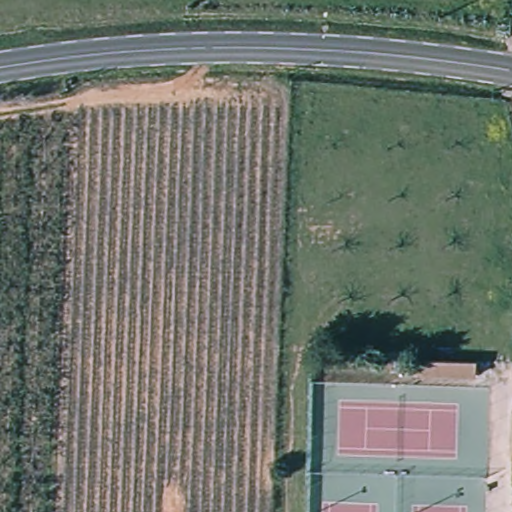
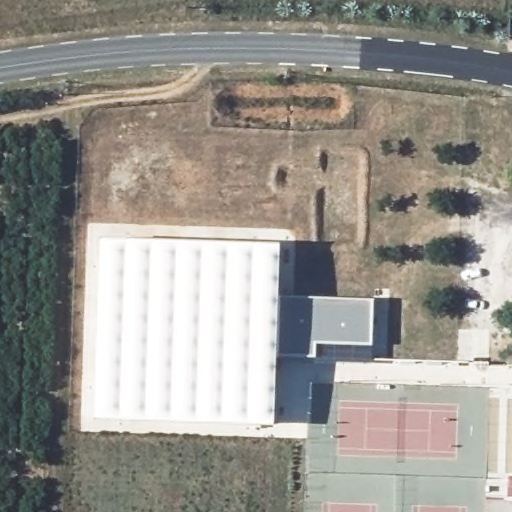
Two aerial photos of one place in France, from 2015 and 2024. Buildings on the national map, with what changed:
new [(102,237),(280,243),(275,422),(95,417),(102,237)]
new [(282,297),(372,300),(370,343),(317,341),(315,356),(279,354),(282,297)]
unchanged [(487,363),(488,378),(415,378),(415,359),(487,363)]

